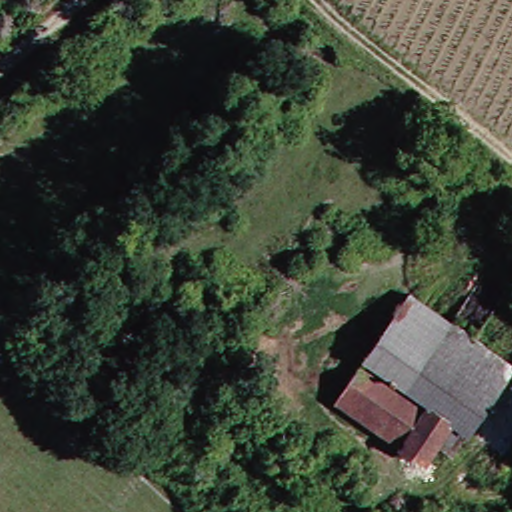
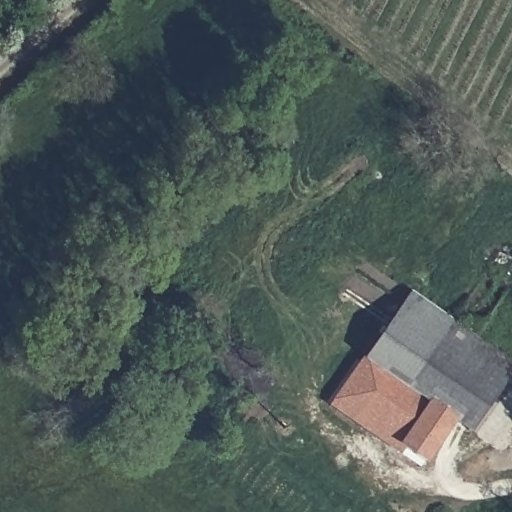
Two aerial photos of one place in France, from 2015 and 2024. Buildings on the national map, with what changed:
unchanged [(455,319),(512,359),(512,367),(473,423),(413,381),(438,341),(398,314),(415,292),(455,319)]
unchanged [(340,398),(398,314),(438,341),(413,381),(473,423),(458,444),(445,435),(429,461),(406,445),(362,414),(340,398)]
unchanged [(372,502),(345,484),(357,462),(385,481),(372,502)]

